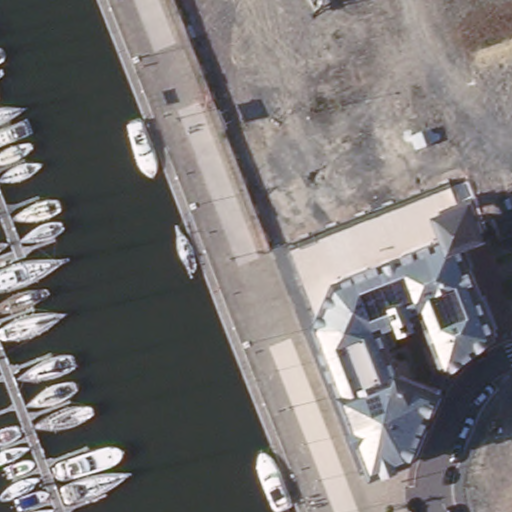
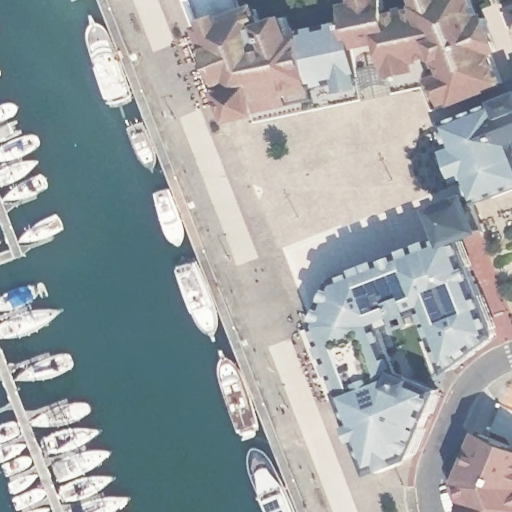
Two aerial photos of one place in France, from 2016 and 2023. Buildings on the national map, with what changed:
new [(243,0),(247,10),(260,5),(268,22),(291,14),(297,29),(352,17),(348,5),(360,1),(360,0),(387,0),(389,9),(426,2),(425,0),(478,0),(486,19),(492,16),(502,41),(496,45),(507,77),(437,105),(429,83),(397,88),(369,95),(262,118),(258,107),(241,112),(208,24),(197,0),(243,0)]
new [(512,99),(512,189),(484,199),(479,191),(472,177),(463,181),(451,149),(460,147),(451,122),(464,118),(512,99)]
unchanged [(479,191),(492,231),(463,241),(453,245),(449,235),(438,205),(479,191)]
unchanged [(453,245),(463,241),(496,325),(497,333),(495,337),(494,338),(447,373),(423,310),(417,312),(421,323),(403,330),(400,321),(386,326),(402,368),(426,377),(425,383),(442,391),(413,460),(376,473),(315,321),(333,276),(449,235),(453,245)]
new [(483,437),(512,425),(512,512),(472,512),(462,488),(483,437)]

